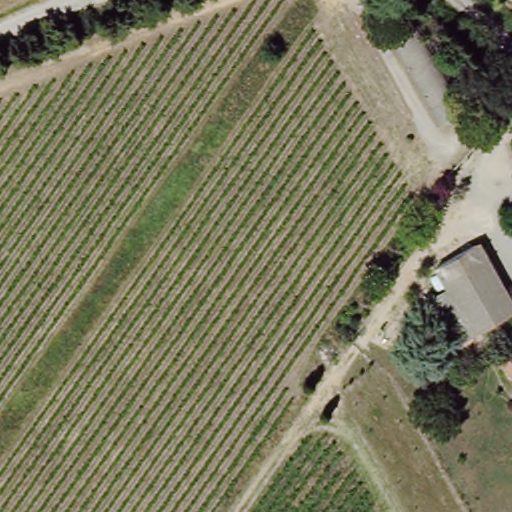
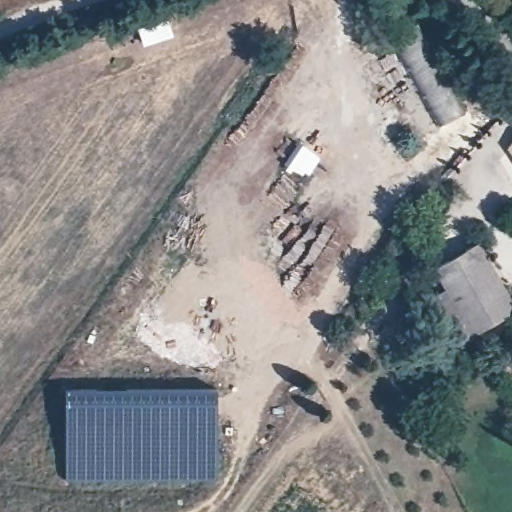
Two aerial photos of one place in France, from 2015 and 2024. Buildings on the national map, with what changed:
new [(417,27),(463,113),(441,124),(394,39),(417,27)]
demolished [(482,100),(455,127),(383,57),(409,30),(482,100)]
new [(512,144),(512,155),(508,148),(512,144)]
unchanged [(455,295),(444,274),(486,250),(512,294),(512,312),(451,346),(430,310),(455,295)]
new [(216,387),(218,453),(217,480),(145,482),(65,481),(63,386),(216,387)]

